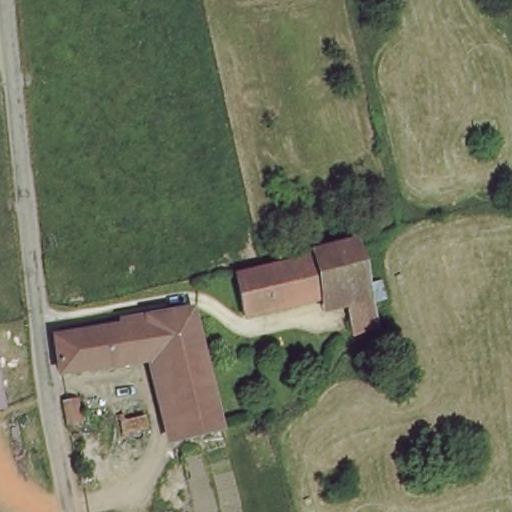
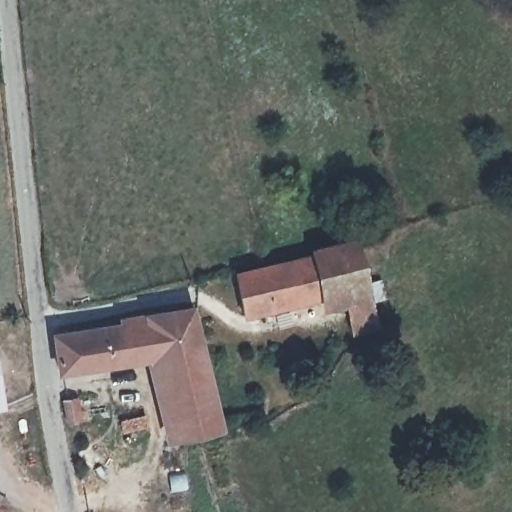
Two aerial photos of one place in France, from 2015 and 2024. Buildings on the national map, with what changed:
unchanged [(344,287),(272,307),(244,313),(235,270),(311,253),(310,247),(352,237),(375,324),(355,329),(344,287)]
unchanged [(190,306),(217,426),(175,436),(152,342),(126,346),(128,358),(57,367),(53,332),(120,322),(120,316),(190,306)]

